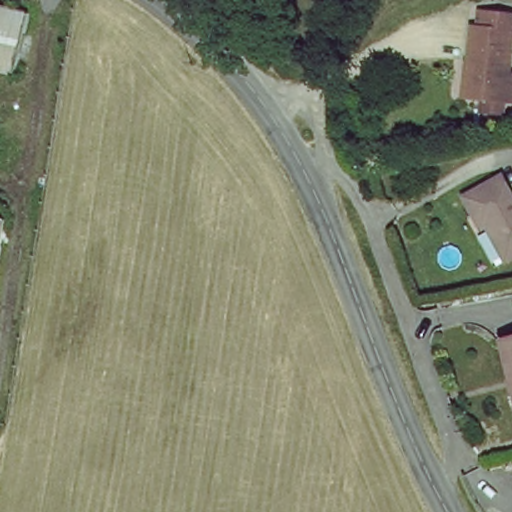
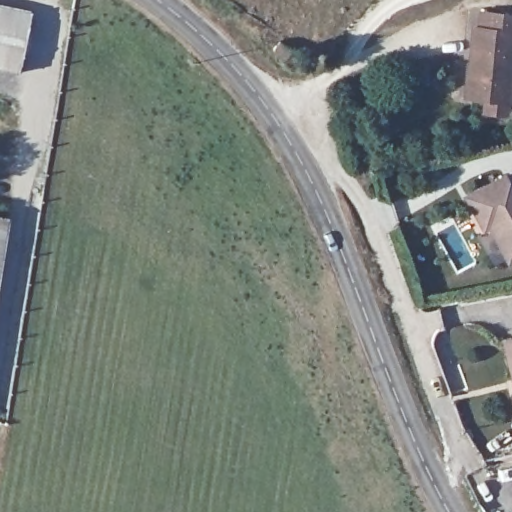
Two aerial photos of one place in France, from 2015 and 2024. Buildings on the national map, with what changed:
unchanged [(0,65),(0,4),(28,9),(18,68),(0,65)]
unchanged [(479,32),(480,19),(512,22),(512,59),(508,103),(467,99),(473,31),(479,32)]
unchanged [(470,195),(506,175),(512,186),(512,259),(511,259),(491,224),(485,227),(470,195)]
unchanged [(0,215),(10,216),(0,279),(0,215)]
unchanged [(504,340),(512,339),(512,372),(504,340)]

